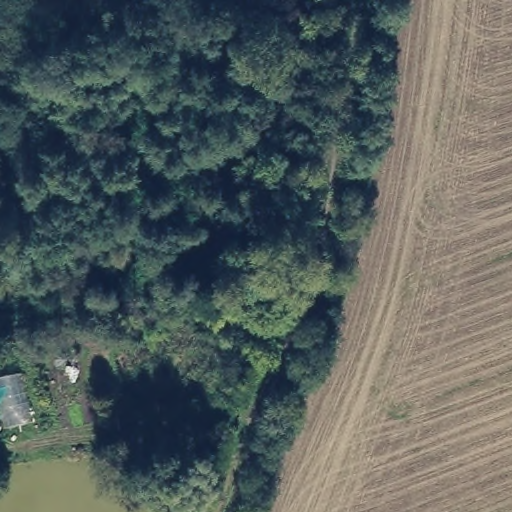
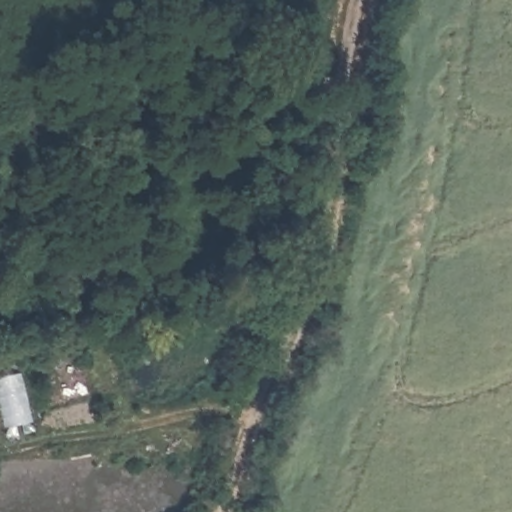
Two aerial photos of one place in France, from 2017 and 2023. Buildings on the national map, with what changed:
unchanged [(36,421),(7,430),(0,405),(0,376),(23,371),(36,421)]

